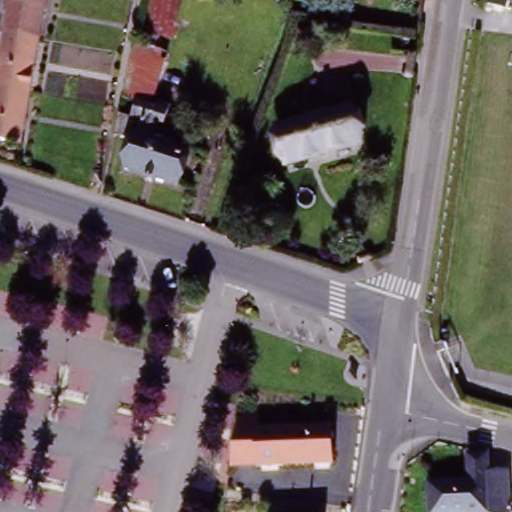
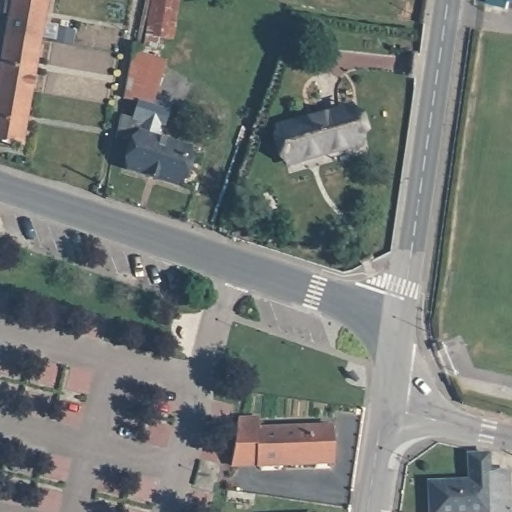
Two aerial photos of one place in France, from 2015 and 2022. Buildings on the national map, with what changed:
unchanged [(7,32),(12,2),(0,1),(0,0),(46,0),(40,38),(25,35),(7,32)]
unchanged [(170,31),(152,28),(157,0),(176,0),(170,31)]
unchanged [(487,0),(512,0),(512,7),(507,5),(504,13),(485,8),(487,0)]
unchanged [(0,68),(7,32),(25,35),(40,38),(30,89),(20,142),(0,139),(0,68)]
unchanged [(127,167),(137,139),(117,133),(121,113),(135,116),(138,102),(123,98),(134,44),(164,52),(152,98),(170,104),(168,110),(164,127),(158,125),(155,139),(187,150),(175,183),(127,167)]
unchanged [(352,107),(362,142),(286,163),(276,127),(352,107)]
unchanged [(280,469),(232,470),(238,420),(260,419),(260,430),(280,431),(280,436),(280,451),(281,458),(282,462),(282,465),(280,469)]
unchanged [(282,465),(281,458),(280,434),(280,431),(332,429),(332,463),(282,465)]
unchanged [(467,482),(467,479),(465,455),(482,453),(483,473),(503,472),(506,512),(427,512),(425,484),(467,482)]
unchanged [(257,480),(255,494),(233,490),(235,477),(257,480)]

